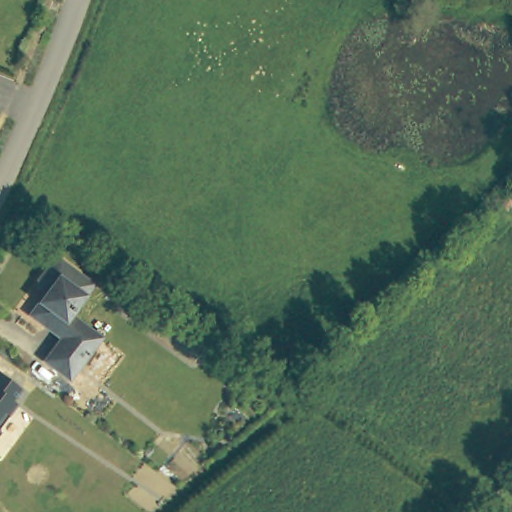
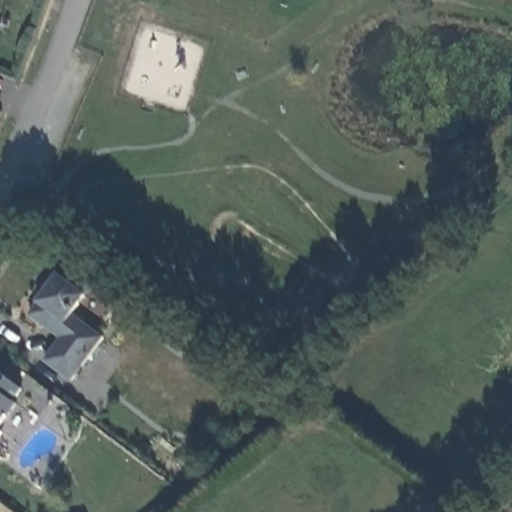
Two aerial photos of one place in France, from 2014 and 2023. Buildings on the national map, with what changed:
unchanged [(42,285),(34,279),(34,272),(48,252),(55,251),(89,276),(68,307),(99,328),(69,371),(42,352),(58,330),(25,308),(42,285)]
unchanged [(0,421),(0,375),(22,391),(0,421)]

